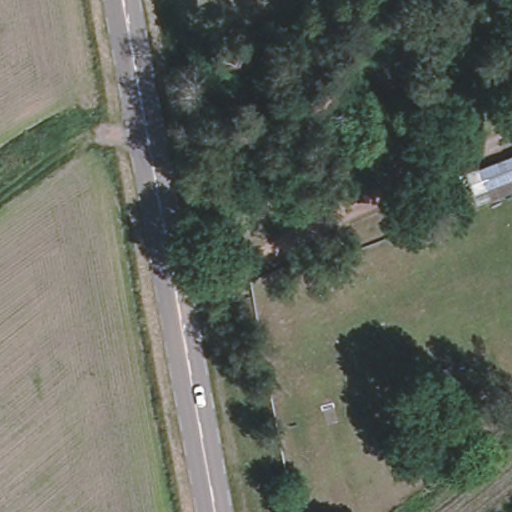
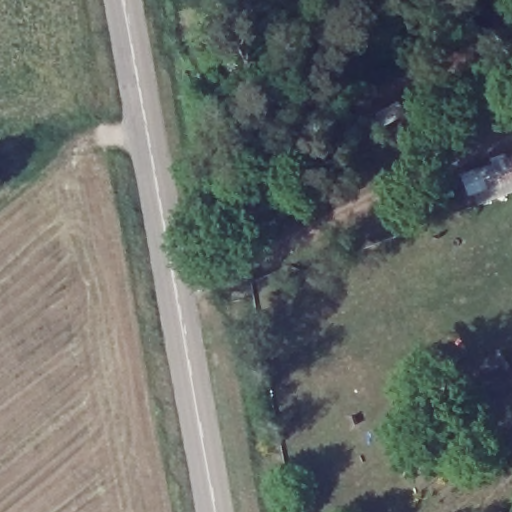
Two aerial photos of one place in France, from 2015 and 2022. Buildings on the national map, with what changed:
unchanged [(488,198),(481,166),(512,156),(512,192),(488,198)]

